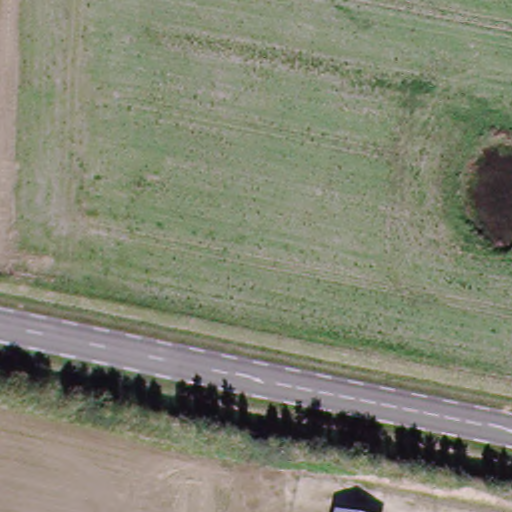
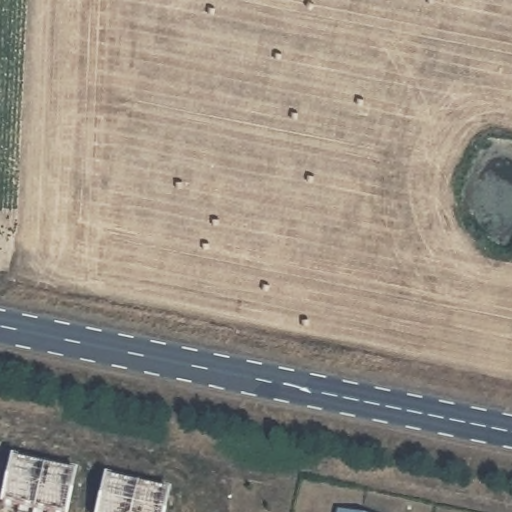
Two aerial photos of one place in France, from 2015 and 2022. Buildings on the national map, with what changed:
new [(63,512),(15,512),(0,508),(0,499),(9,461),(71,475),(63,512)]
new [(161,512),(95,512),(102,481),(165,495),(161,512)]
unchanged [(342,512),(335,512),(335,511),(342,512)]

